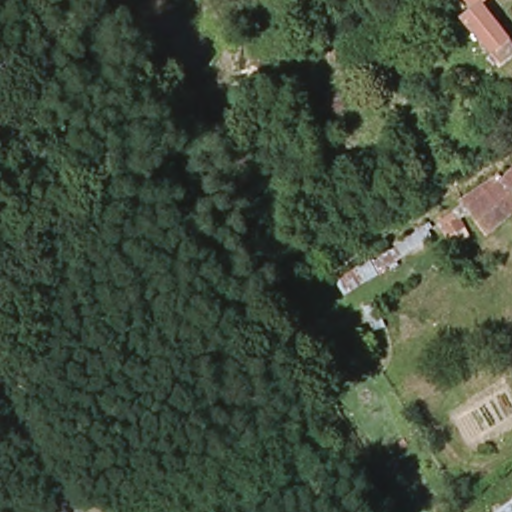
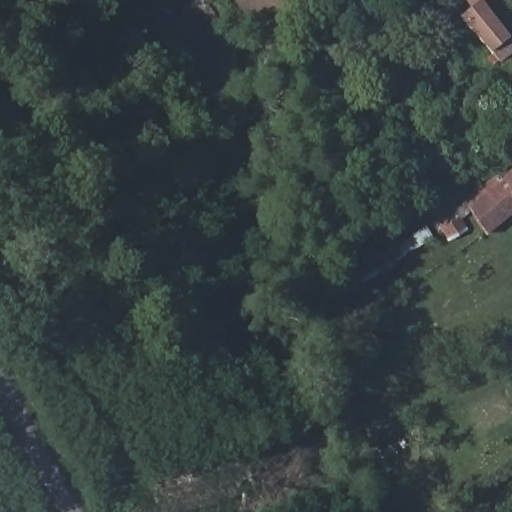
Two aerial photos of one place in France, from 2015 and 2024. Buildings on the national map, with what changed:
unchanged [(460,20),(471,10),(464,0),(501,0),(491,10),(512,33),(512,51),(499,64),(460,20)]
unchanged [(483,237),(464,217),(512,171),(512,213),(483,237)]

